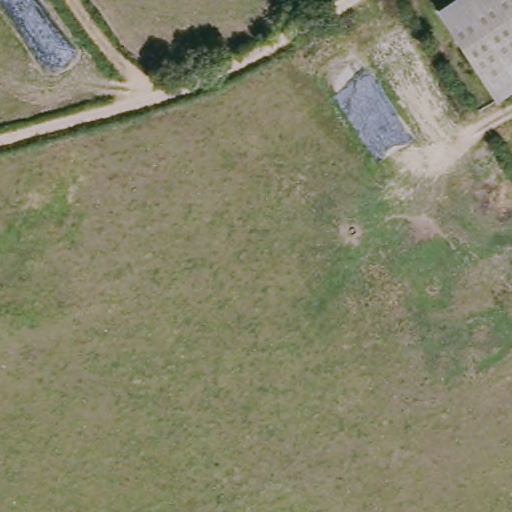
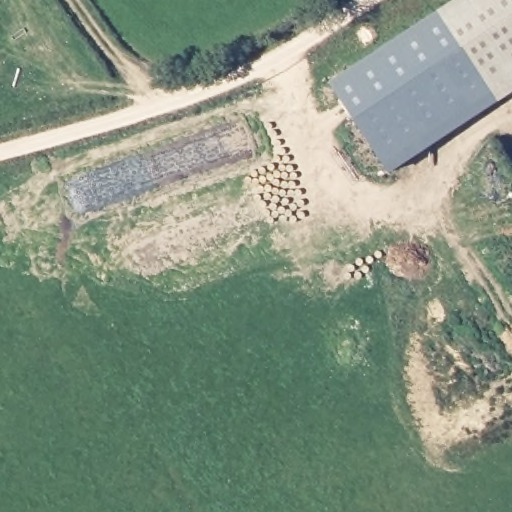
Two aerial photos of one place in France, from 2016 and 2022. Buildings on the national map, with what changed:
unchanged [(495,100),(435,9),(449,0),(512,0),(512,89),(495,100)]
new [(387,172),(329,82),(435,9),(495,100),(387,172)]

